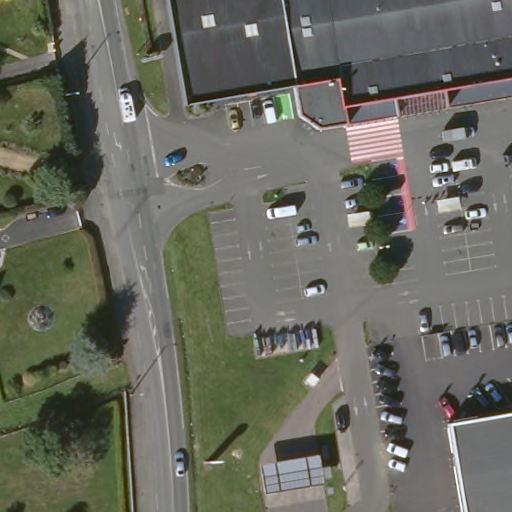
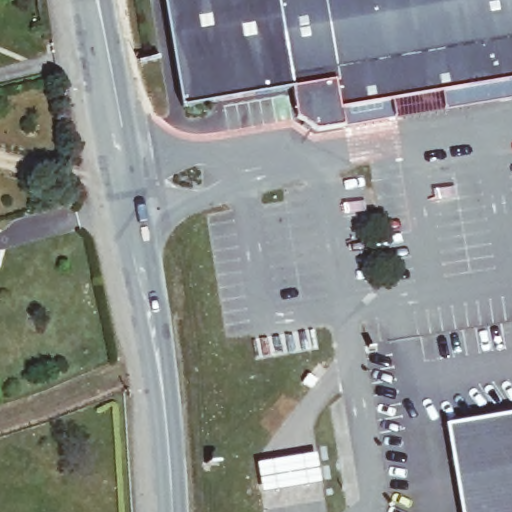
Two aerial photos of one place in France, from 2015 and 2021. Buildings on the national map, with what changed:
unchanged [(512,86),(307,113),(287,97),(225,105),(222,77),(172,84),(161,0),(512,0),(512,86)]
unchanged [(512,512),(459,512),(446,427),(512,417),(512,512)]
unchanged [(328,489),(265,500),(260,465),(322,452),(328,489)]

